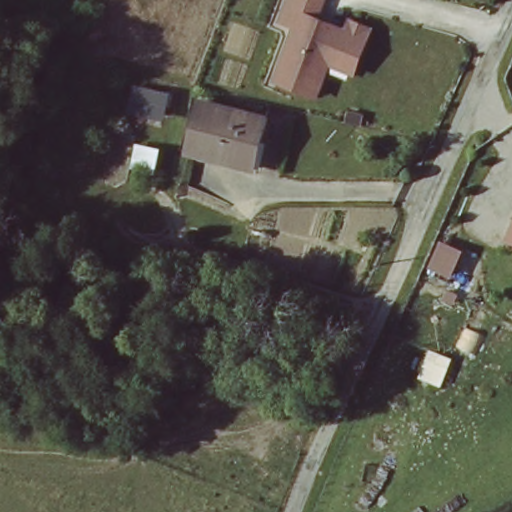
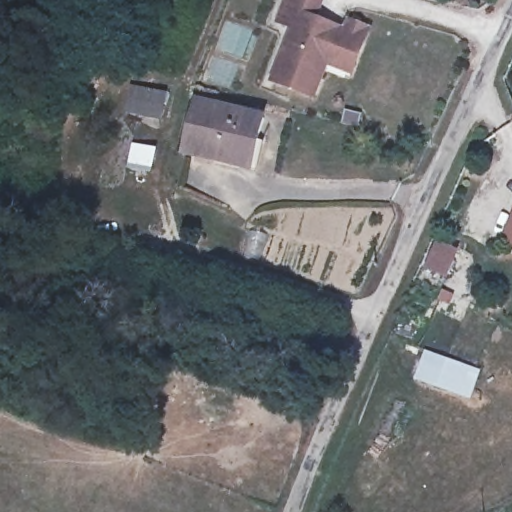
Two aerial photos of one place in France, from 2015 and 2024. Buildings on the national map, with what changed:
unchanged [(321,62),(308,96),(268,81),(287,27),(272,22),(279,0),(311,0),(305,18),(339,30),(342,20),(361,26),(357,37),(349,61),(345,71),(321,62)]
unchanged [(243,165),(180,152),(192,102),(262,118),(257,141),(251,167),(243,165)]
unchanged [(512,216),(512,243),(502,238),(512,216)]
new [(472,401),(415,380),(425,351),(482,371),(472,401)]

